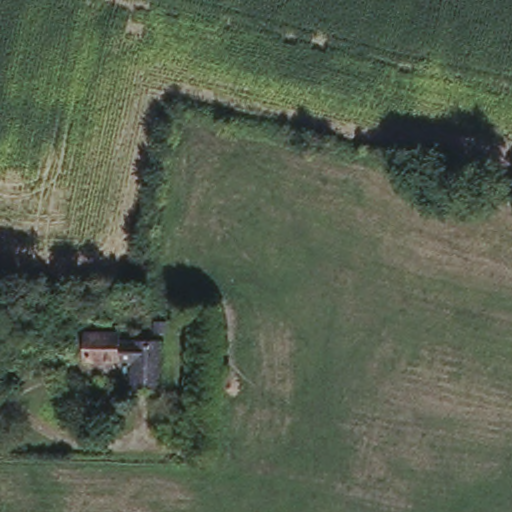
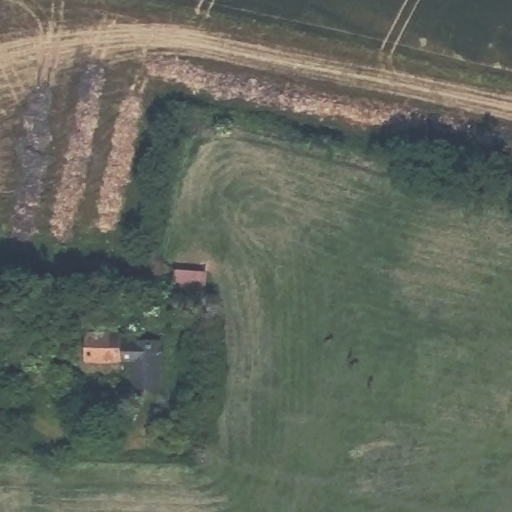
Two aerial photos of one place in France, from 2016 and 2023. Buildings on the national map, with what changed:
unchanged [(135,384),(134,362),(87,359),(86,331),(162,330),(161,386),(135,384)]

